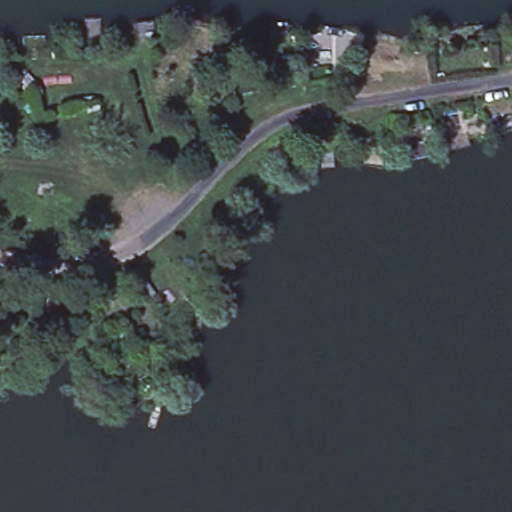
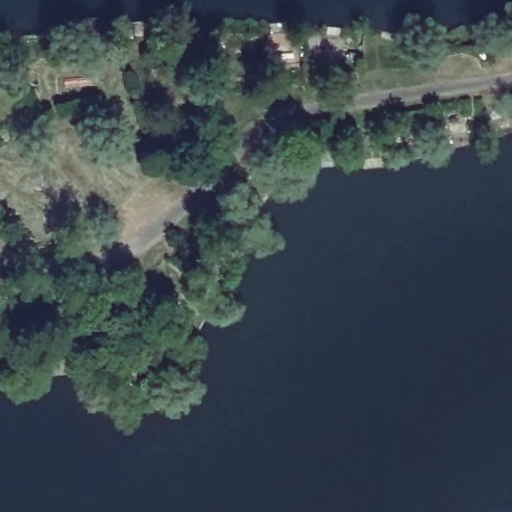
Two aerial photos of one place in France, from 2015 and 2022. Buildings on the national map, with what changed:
unchanged [(131,25),(153,22),(155,35),(133,39),(131,25)]
unchanged [(45,34),(46,46),(22,47),(21,36),(45,34)]

